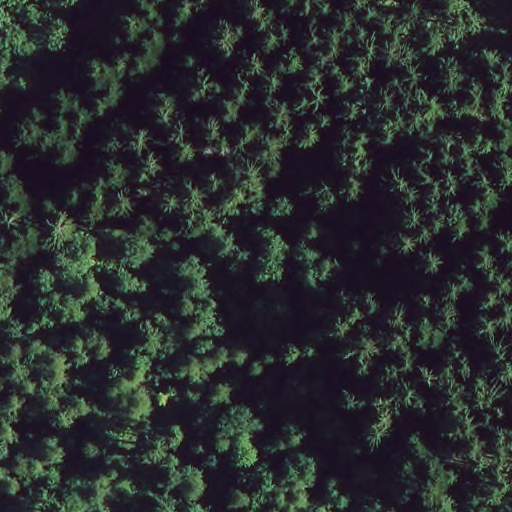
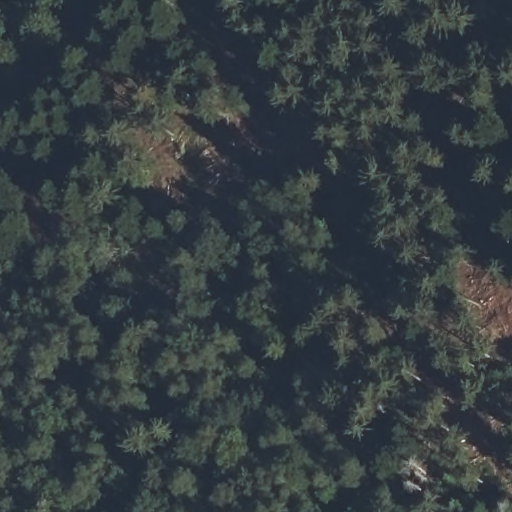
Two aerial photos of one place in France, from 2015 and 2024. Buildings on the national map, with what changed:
[]

